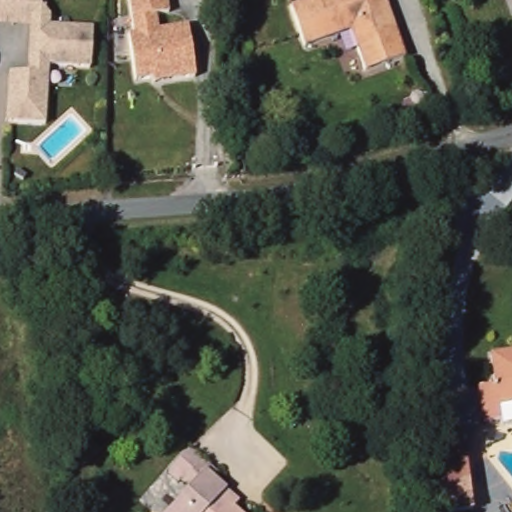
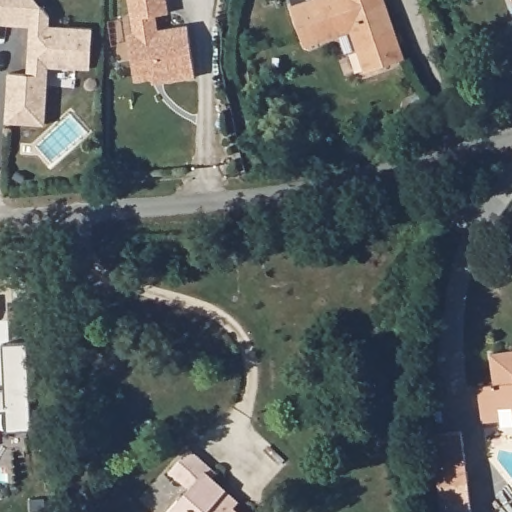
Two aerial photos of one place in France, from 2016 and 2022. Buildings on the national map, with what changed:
unchanged [(49,23),(92,26),(88,67),(48,64),(46,125),(4,121),(5,69),(26,70),(27,24),(0,23),(0,0),(41,0),(50,12),(49,23)]
unchanged [(160,11),(161,26),(192,22),(199,78),(136,79),(130,30),(138,29),(133,0),(170,0),(172,8),(160,11)]
unchanged [(407,53),(367,67),(352,25),(306,41),(292,1),(295,0),(389,0),(394,16),(407,53)]
new [(3,388),(1,343),(27,342),(31,430),(5,431),(4,410),(0,411),(0,389),(3,388)]
unchanged [(500,419),(483,422),(478,387),(494,384),(490,354),(512,351),(512,407),(499,408),(500,419)]
unchanged [(452,512),(442,512),(434,433),(463,430),(471,511),(452,512)]
unchanged [(189,488),(179,480),(177,483),(167,474),(189,449),(216,473),(212,478),(225,490),(220,496),(237,512),(168,512),(189,488)]

